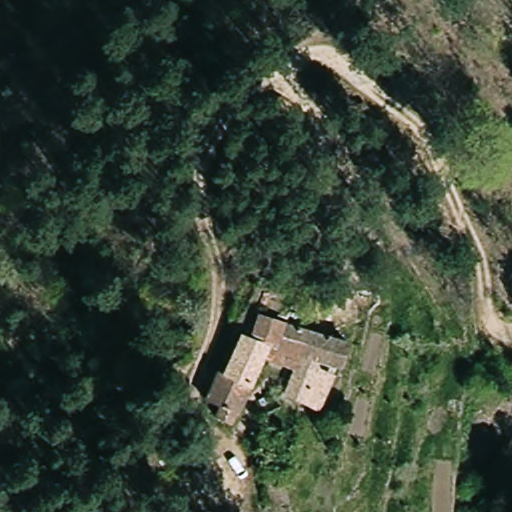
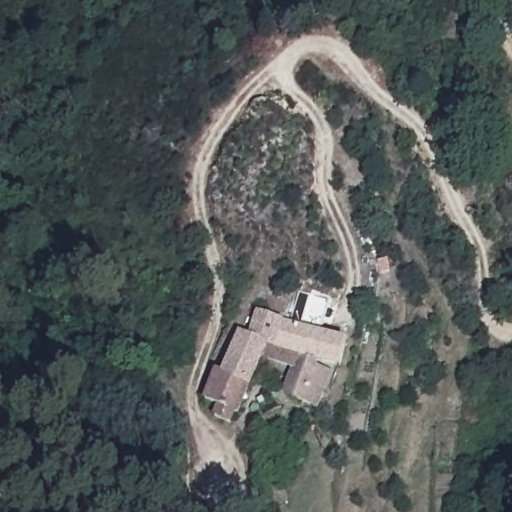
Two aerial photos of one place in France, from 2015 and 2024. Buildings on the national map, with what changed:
unchanged [(323,411),(309,406),(292,400),(305,360),(273,352),(255,347),(263,325),(296,333),(300,322),(315,326),(310,338),(351,349),(342,372),(338,371),(323,366),(321,372),(336,377),(323,411)]
unchanged [(251,398),(248,406),(245,414),(240,413),(236,426),(220,425),(225,412),(212,407),(220,384),(229,385),(245,344),(255,347),(273,352),(251,398)]

